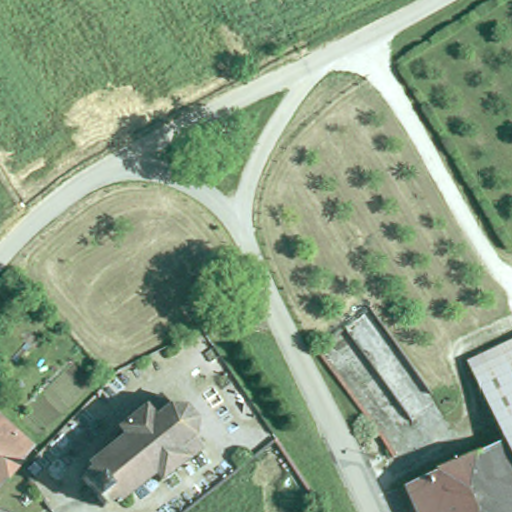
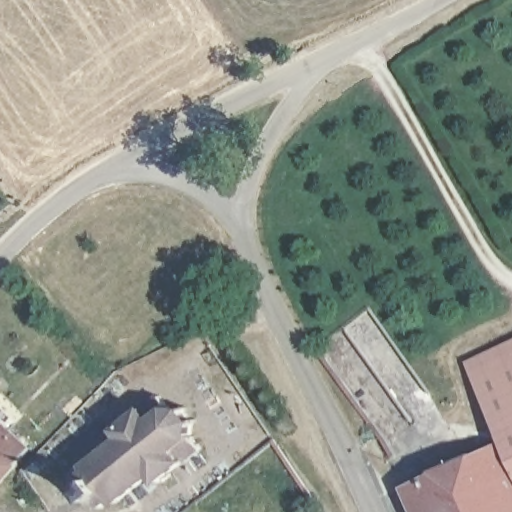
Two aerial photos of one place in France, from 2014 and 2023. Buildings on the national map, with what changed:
unchanged [(467,363),(512,342),(512,363),(475,380),(467,363)]
unchanged [(502,442),(475,380),(512,363),(512,462),(502,442)]
unchanged [(170,406),(170,411),(182,413),(184,409),(187,411),(185,415),(192,422),(196,421),(197,423),(192,425),(192,435),(195,437),(194,440),(202,449),(188,460),(187,464),(183,464),(162,480),(161,485),(158,485),(158,482),(153,475),(118,503),(117,506),(115,505),(115,502),(112,500),(103,507),(103,511),(100,512),(100,507),(81,484),(77,483),(77,479),(82,479),(90,473),(90,471),(85,470),(85,467),(90,467),(125,440),(120,433),(116,433),(117,429),(120,430),(142,414),(143,409),(146,409),(160,398),(167,407),(170,406)]
unchanged [(15,467),(0,485),(0,425),(28,451),(15,467)]
unchanged [(512,462),(512,512),(415,512),(405,489),(502,442),(512,462)]

